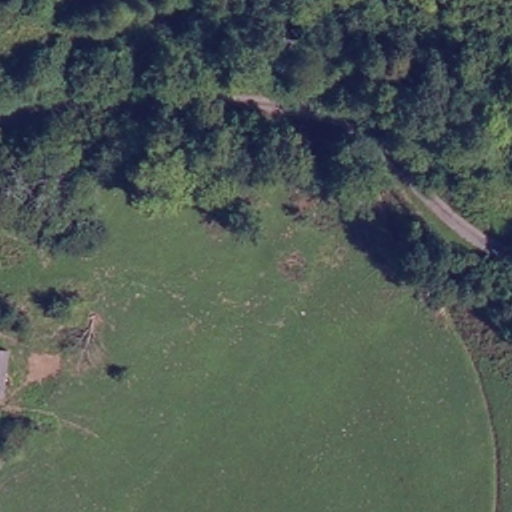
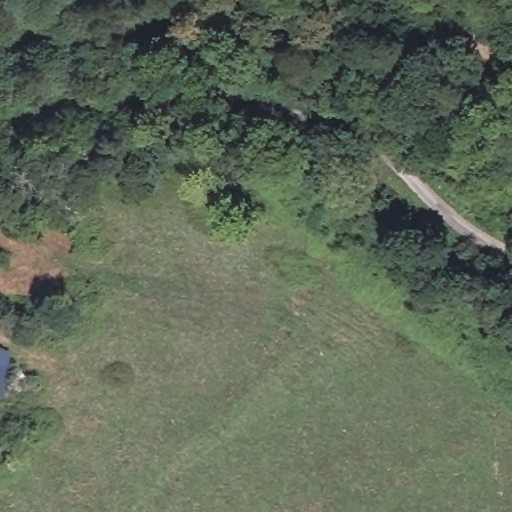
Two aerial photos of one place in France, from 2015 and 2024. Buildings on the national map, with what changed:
unchanged [(0,386),(0,354),(4,354),(0,386)]

